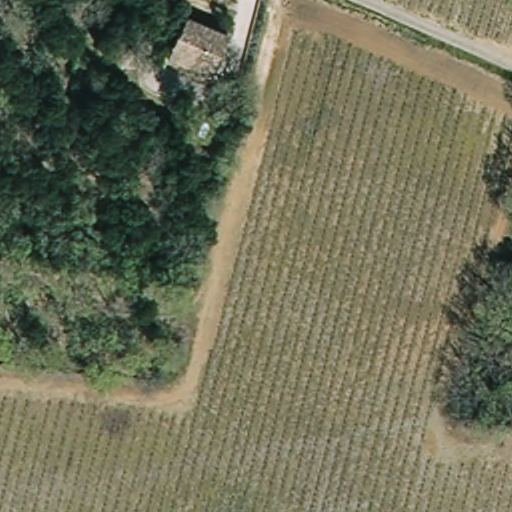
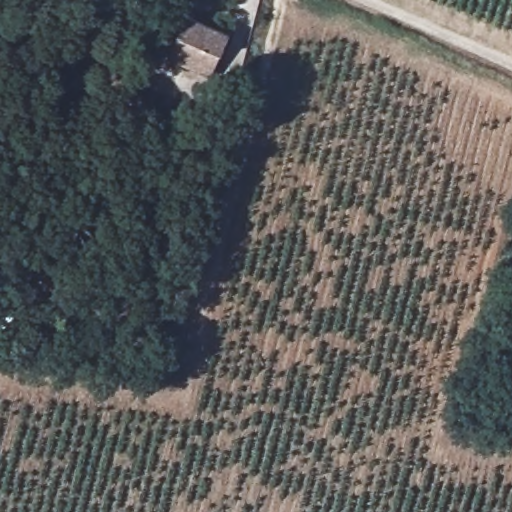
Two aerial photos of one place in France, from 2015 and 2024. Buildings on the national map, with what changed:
unchanged [(179,65),(186,36),(221,46),(215,74),(179,65)]

